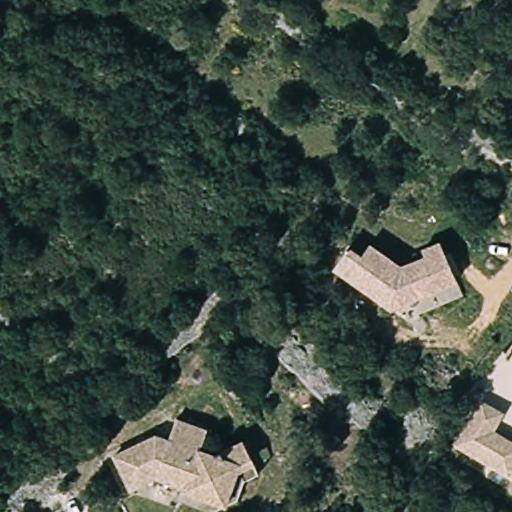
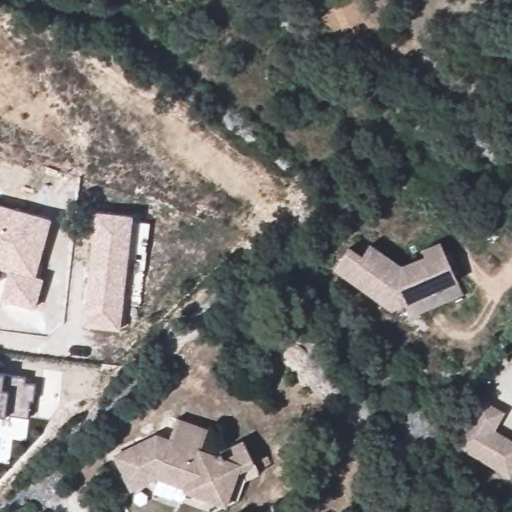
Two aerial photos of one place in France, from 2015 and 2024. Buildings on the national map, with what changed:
new [(52,219),(35,275),(44,277),(35,307),(1,298),(8,271),(0,269),(0,204),(52,219)]
new [(134,215),(120,330),(82,325),(96,210),(134,215)]
unchanged [(400,315),(338,273),(353,250),(365,257),(375,244),(405,266),(428,258),(425,250),(446,240),(463,286),(400,315)]
new [(5,372),(26,375),(25,382),(35,383),(33,398),(30,398),(30,415),(5,412),(3,415),(0,414),(0,372),(5,372)]
unchanged [(487,401),(512,416),(512,421),(506,429),(512,434),(512,480),(511,482),(458,447),(487,401)]
unchanged [(212,420),(203,443),(217,446),(242,433),(258,466),(233,475),(227,509),(156,486),(129,496),(112,448),(160,429),(171,432),(177,408),(212,420)]

